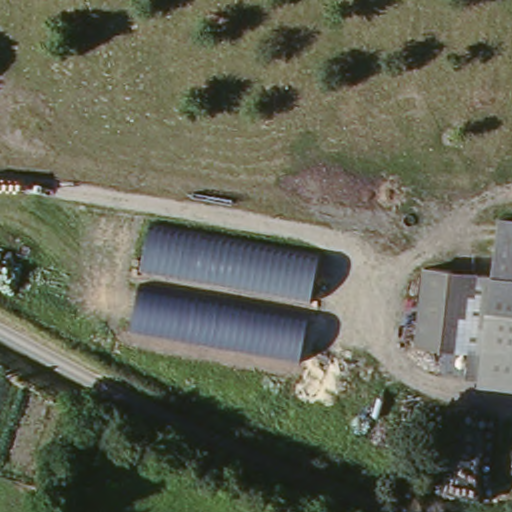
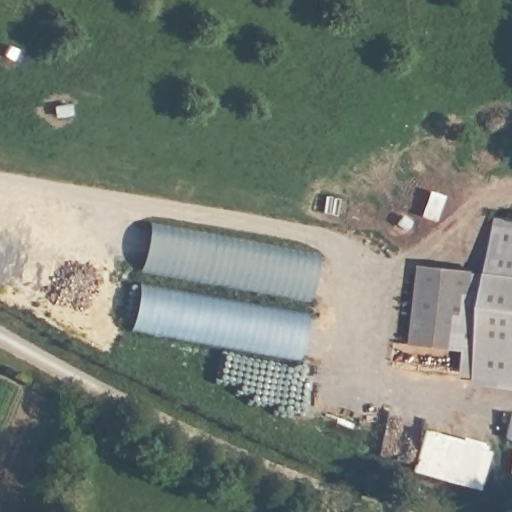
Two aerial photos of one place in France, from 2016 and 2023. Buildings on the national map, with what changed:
unchanged [(149,220),(320,254),(312,297),(141,267),(149,220)]
unchanged [(463,378),(439,372),(440,351),(416,348),(422,271),(490,277),(499,220),(512,221),(512,392),(478,388),(463,378)]
unchanged [(140,287),(309,319),(301,360),(132,327),(140,287)]
new [(424,431),(492,449),(480,492),(413,477),(424,431)]

